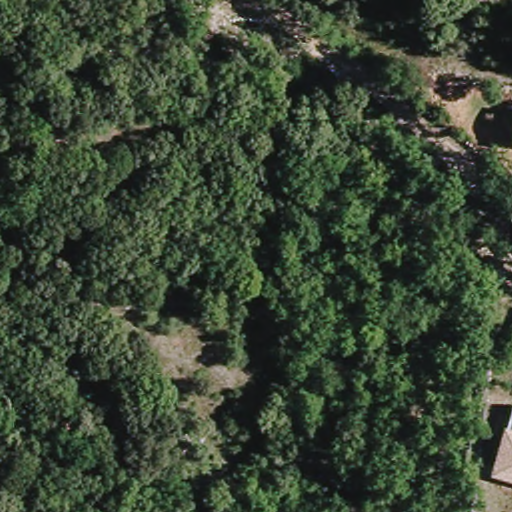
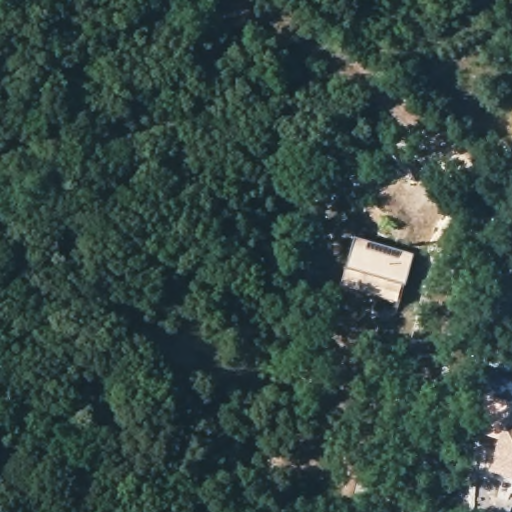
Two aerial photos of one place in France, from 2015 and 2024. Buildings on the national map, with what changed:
new [(339,293),(353,239),(412,254),(399,310),(339,293)]
unchanged [(501,425),(506,426),(512,406),(512,479),(488,472),(501,425)]

